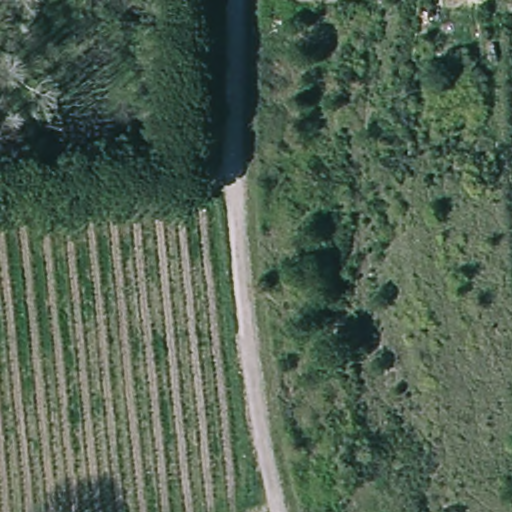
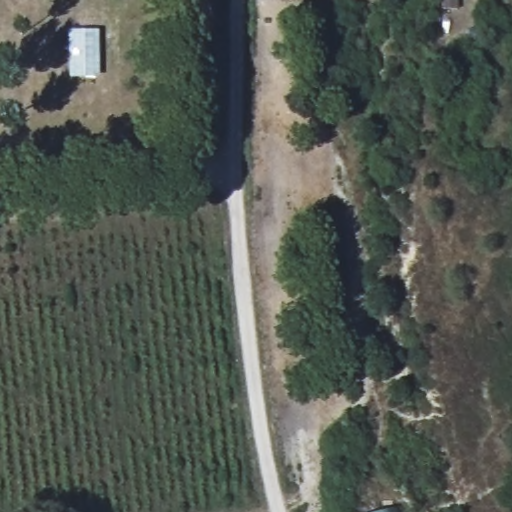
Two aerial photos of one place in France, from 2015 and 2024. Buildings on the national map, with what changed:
new [(101,77),(70,78),(69,31),(99,30),(101,77)]
new [(401,512),(372,512),(400,505),(401,512)]

